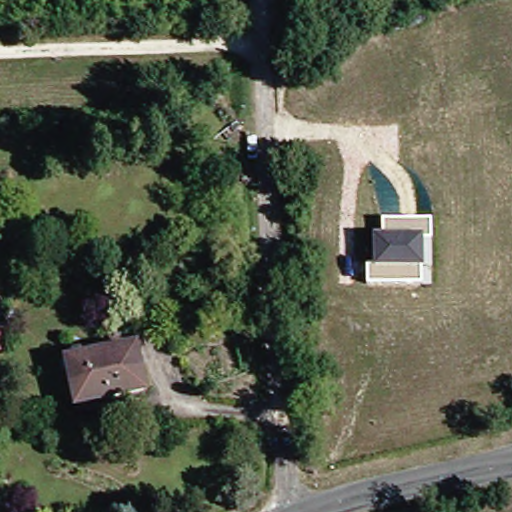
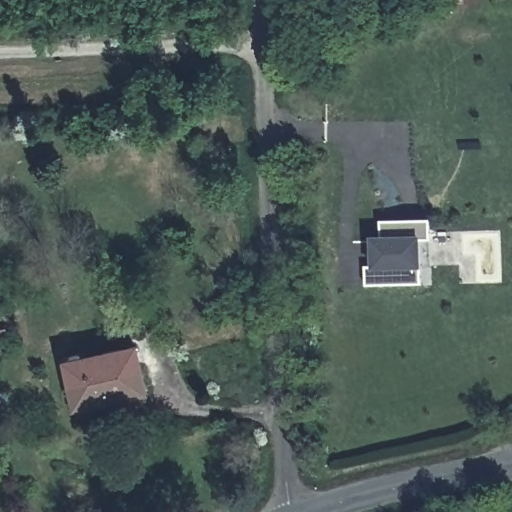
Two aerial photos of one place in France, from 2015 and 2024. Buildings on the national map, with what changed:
unchanged [(366,270),(372,271),(371,240),(379,240),(380,223),(431,221),(433,271),(423,271),(423,286),(367,288),(366,270)]
unchanged [(70,361),(140,347),(149,393),(79,407),(70,361)]

